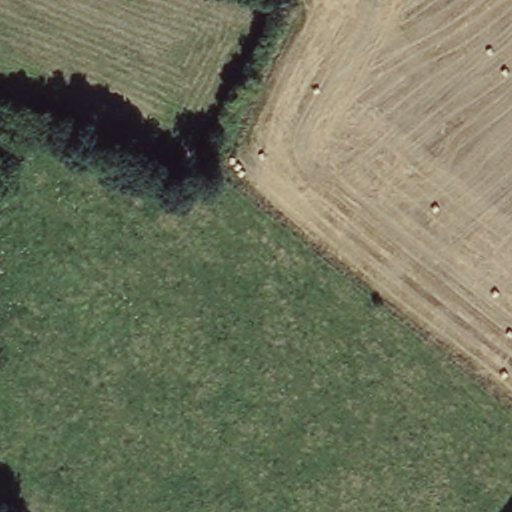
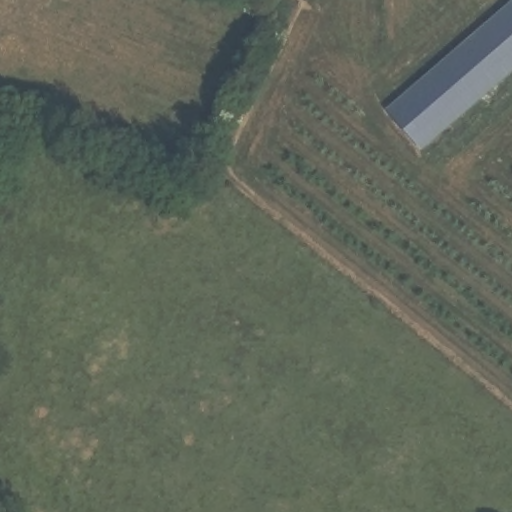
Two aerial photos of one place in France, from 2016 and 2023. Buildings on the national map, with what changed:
new [(497,0),(512,0),(512,61),(421,138),(386,98),(497,0)]

